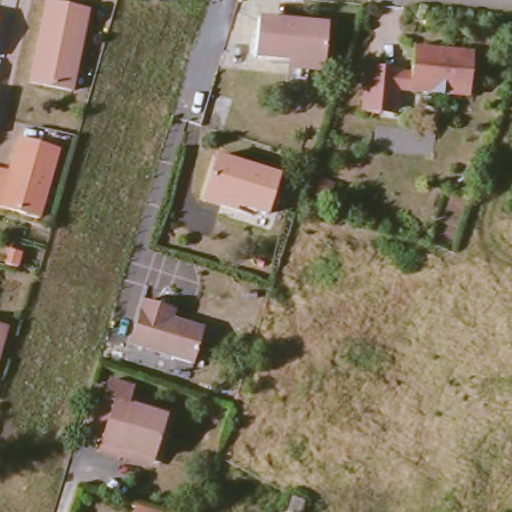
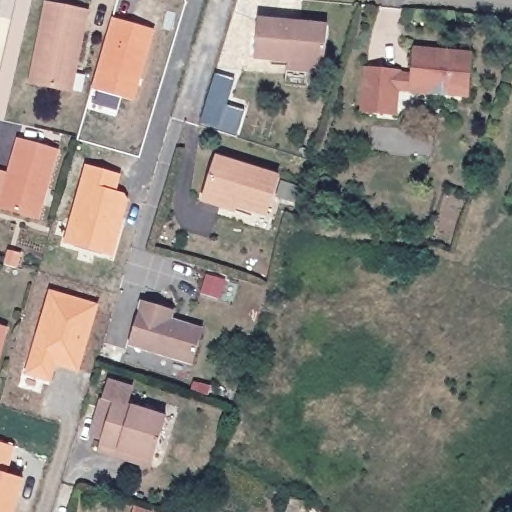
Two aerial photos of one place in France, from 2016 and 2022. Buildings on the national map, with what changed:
unchanged [(88,9),(70,89),(30,80),(47,1),(88,9)]
unchanged [(253,61),(257,19),(323,24),(320,66),(253,61)]
new [(111,22),(153,33),(133,104),(91,93),(111,22)]
unchanged [(363,110),(366,84),(368,64),(400,68),(399,73),(412,74),(414,47),(474,53),(469,94),(449,92),(449,95),(429,93),(429,90),(398,87),(396,114),(363,110)]
new [(293,64),(325,66),(324,74),(311,73),(309,87),(291,85),(293,64)]
unchanged [(43,217),(0,207),(0,170),(4,171),(15,135),(62,149),(43,217)]
unchanged [(215,210),(218,200),(202,195),(212,159),(274,178),(263,218),(233,209),(231,215),(215,210)]
new [(112,261),(66,248),(88,170),(121,179),(116,196),(126,198),(128,204),(123,225),(119,237),(112,261)]
new [(98,309),(80,375),(57,368),(52,385),(28,378),(52,296),(98,309)]
unchanged [(126,345),(138,300),(161,308),(159,315),(201,327),(191,364),(126,345)]
unchanged [(0,335),(0,328),(2,329),(0,335)]
unchanged [(98,449),(101,438),(93,435),(109,380),(133,387),(128,407),(164,417),(153,458),(119,448),(118,454),(98,449)]
new [(6,475),(23,480),(14,512),(0,512),(0,444),(14,448),(6,475)]
unchanged [(304,512),(285,512),(289,497),(308,502),(304,512)]
unchanged [(146,512),(138,512),(139,510),(146,512)]

